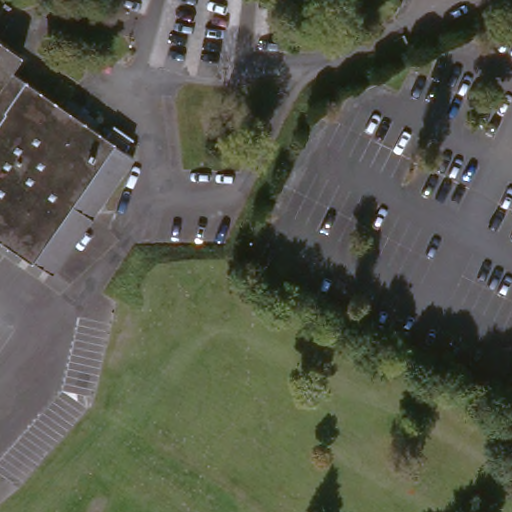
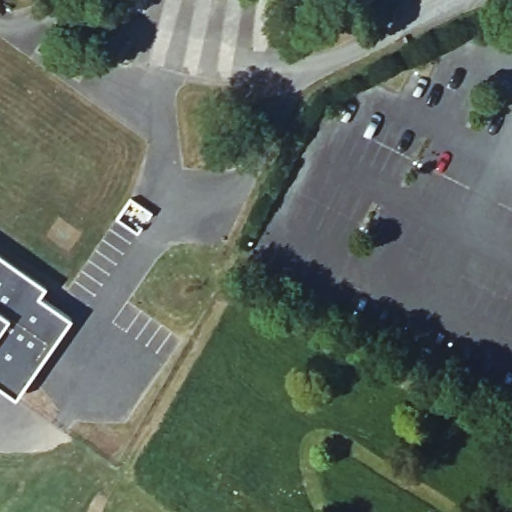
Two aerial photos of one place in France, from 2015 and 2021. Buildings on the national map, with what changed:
demolished [(23,51),(22,53),(16,69),(54,97),(114,141),(72,204),(89,218),(48,277),(0,243),(0,35),(23,51)]
new [(135,209),(156,225),(141,245),(120,229),(135,209)]
new [(45,285),(39,295),(71,318),(15,396),(0,386),(0,254),(45,285)]

